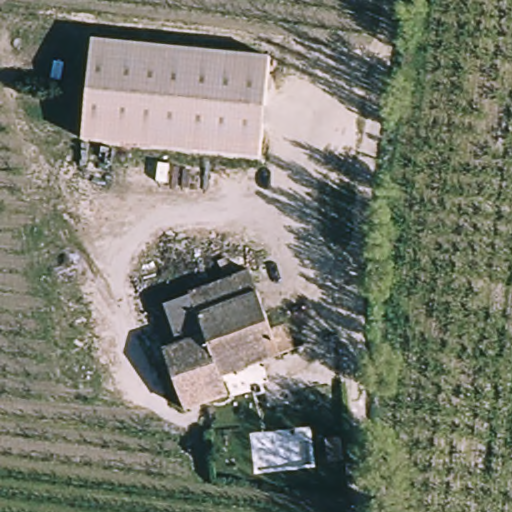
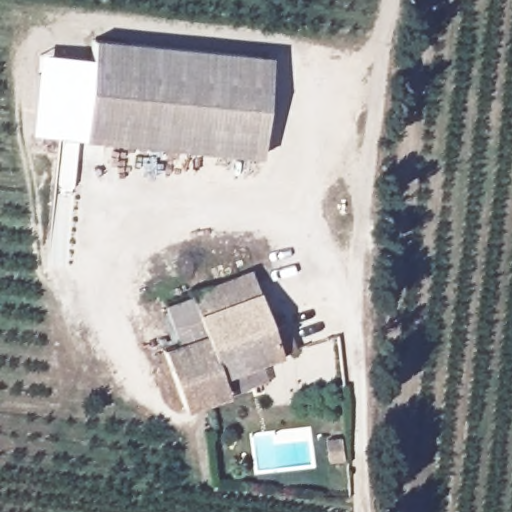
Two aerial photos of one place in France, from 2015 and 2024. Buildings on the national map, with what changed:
unchanged [(87,31),(262,54),(250,153),(75,131),(87,31)]
new [(85,55),(75,130),(30,133),(38,52),(85,55)]
unchanged [(197,310),(190,290),(188,288),(250,265),(258,288),(197,310)]
unchanged [(266,309),(280,305),(293,344),(280,349),(220,371),(227,390),(183,405),(162,346),(178,339),(165,300),(190,291),(190,290),(197,310),(258,288),(266,309)]

